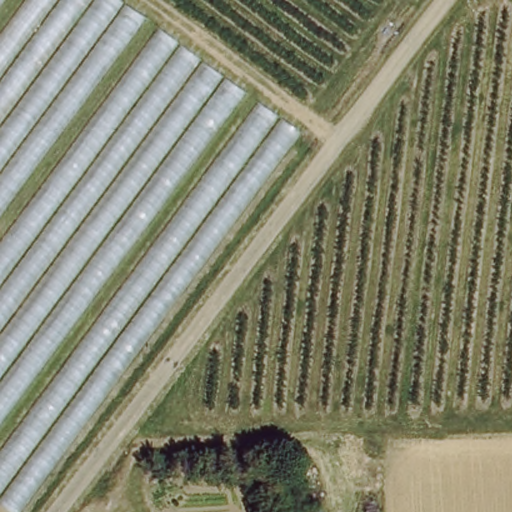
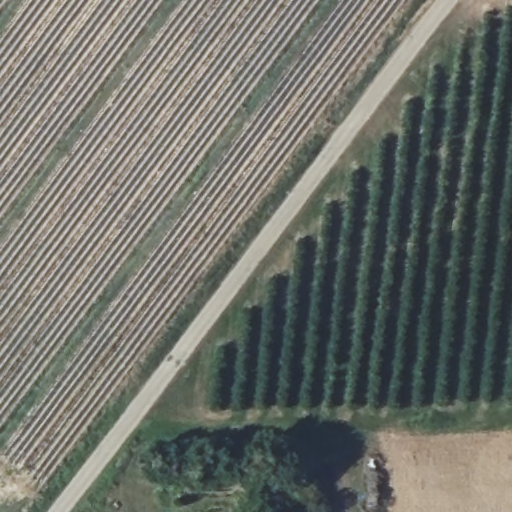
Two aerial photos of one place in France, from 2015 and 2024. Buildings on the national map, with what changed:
demolished [(16,512),(0,512),(0,0),(124,0),(297,131),(16,512)]

